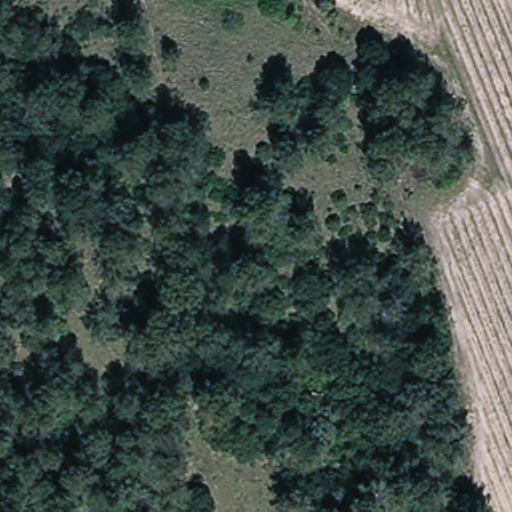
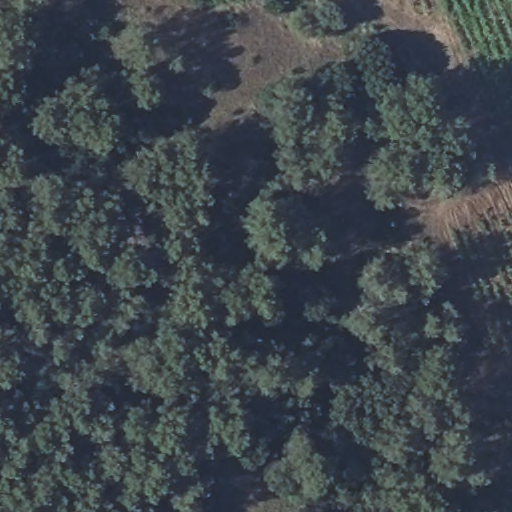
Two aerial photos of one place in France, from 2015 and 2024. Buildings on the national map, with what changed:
[]

